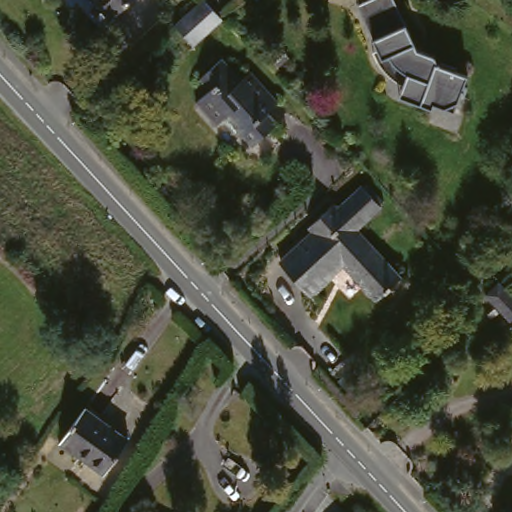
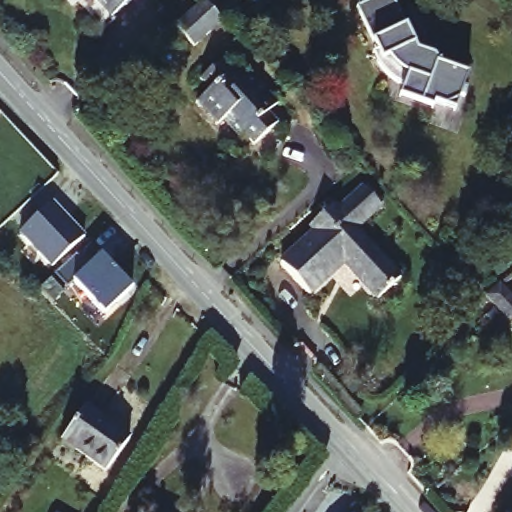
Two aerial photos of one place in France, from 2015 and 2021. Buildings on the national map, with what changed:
unchanged [(111,11),(101,0),(123,0),(111,11)]
unchanged [(201,0),(204,0),(221,19),(222,20),(192,46),(174,25),(201,0)]
unchanged [(398,101),(400,96),(402,90),(398,89),(393,85),(389,81),(385,78),(381,74),(378,70),(376,65),(372,57),(376,55),(358,16),(355,10),(361,8),(378,0),(391,0),(416,55),(430,60),(431,60),(432,60),(432,61),(433,62),(434,63),(434,64),(435,65),(435,66),(435,67),(435,68),(439,70),(440,67),(456,73),(455,75),(467,80),(463,90),(466,92),(463,101),(459,100),(457,106),(443,112),(433,109),(431,113),(398,101)]
unchanged [(223,115),(219,117),(199,95),(209,85),(199,73),(221,54),(241,75),(250,67),(277,98),(267,107),(276,119),(253,140),(242,129),(239,131),(223,115)]
unchanged [(400,268),(377,288),(343,252),(308,283),(280,252),(315,221),(310,215),(332,195),(337,200),(362,177),(380,195),(354,219),(400,268)]
new [(54,200),(86,235),(54,265),(22,230),(54,200)]
new [(79,250),(91,263),(104,251),(135,285),(107,311),(77,277),(70,284),(58,270),(79,250)]
unchanged [(512,323),(511,323),(487,296),(501,283),(512,295),(512,323)]
unchanged [(61,437),(85,405),(126,436),(103,468),(61,437)]

